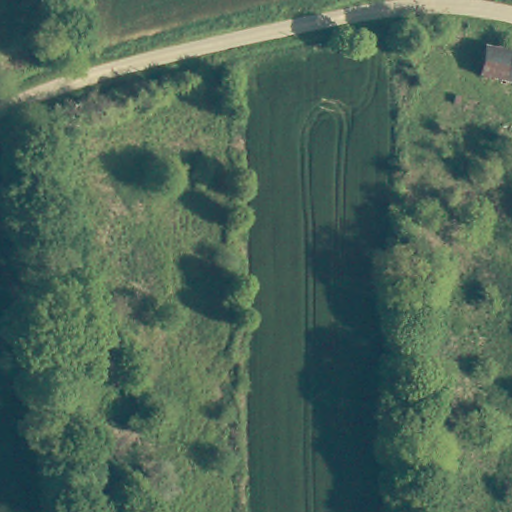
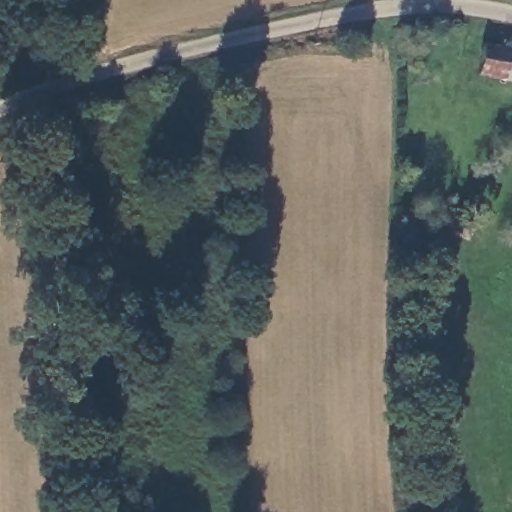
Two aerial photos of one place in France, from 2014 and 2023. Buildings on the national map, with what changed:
unchanged [(475,71),(482,45),(512,51),(512,80),(475,71)]

